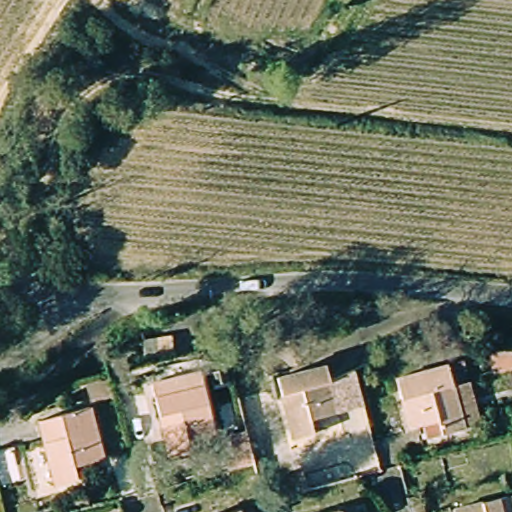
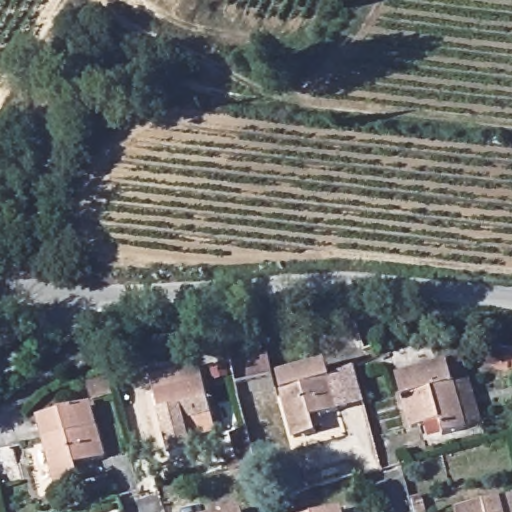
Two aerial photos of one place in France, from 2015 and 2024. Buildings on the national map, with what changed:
unchanged [(480,365),(484,344),(510,350),(512,350),(512,372),(480,365)]
unchanged [(484,423),(466,426),(446,432),(442,420),(411,428),(399,376),(450,363),(456,386),(472,382),(484,423)]
unchanged [(281,378),(329,366),(341,409),(315,416),(319,434),(297,440),(281,378)]
unchanged [(192,437),(195,452),(174,457),(154,382),(202,369),(218,431),(192,437)]
unchanged [(116,401),(98,405),(92,387),(111,382),(116,401)]
unchanged [(42,420),(89,407),(104,462),(74,469),(79,484),(60,488),(42,420)]
unchanged [(250,428),(259,462),(248,466),(245,466),(236,432),(250,428)]
unchanged [(512,499),(512,512),(468,512),(512,499)]
unchanged [(243,512),(240,512),(243,511),(243,512)]

